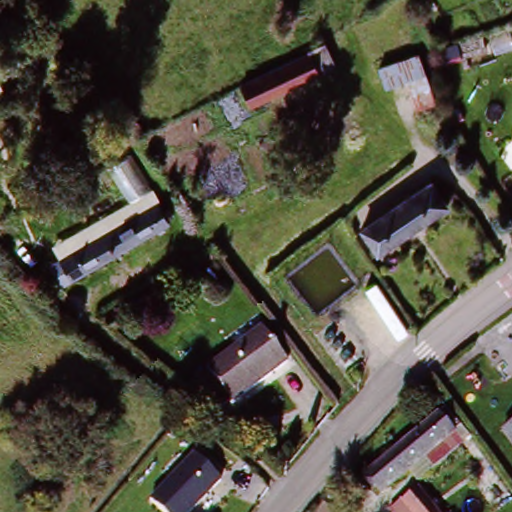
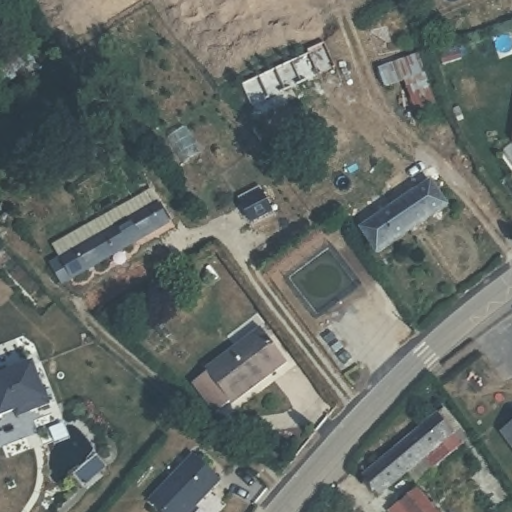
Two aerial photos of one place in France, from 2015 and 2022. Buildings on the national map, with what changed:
unchanged [(423,49),(443,100),(419,111),(410,85),(392,90),(381,65),(423,49)]
unchanged [(259,80),(327,51),(337,71),(268,101),(259,80)]
unchanged [(60,292),(48,260),(129,211),(104,169),(131,150),(174,227),(60,292)]
unchanged [(430,183),(445,205),(380,252),(364,230),(430,183)]
unchanged [(257,333),(284,366),(231,408),(205,376),(257,333)]
new [(5,367),(30,357),(47,401),(29,408),(27,403),(0,413),(0,364),(2,363),(5,367)]
unchanged [(452,427),(382,487),(367,467),(437,409),(452,427)]
unchanged [(500,434),(507,429),(512,426),(512,452),(500,434)]
unchanged [(155,494),(200,447),(210,458),(169,507),(155,494)]
unchanged [(192,512),(174,512),(169,507),(210,458),(227,473),(192,512)]
unchanged [(417,490),(437,512),(391,512),(417,490)]

